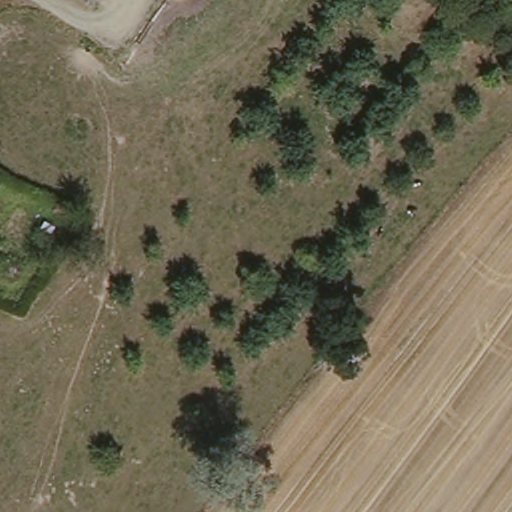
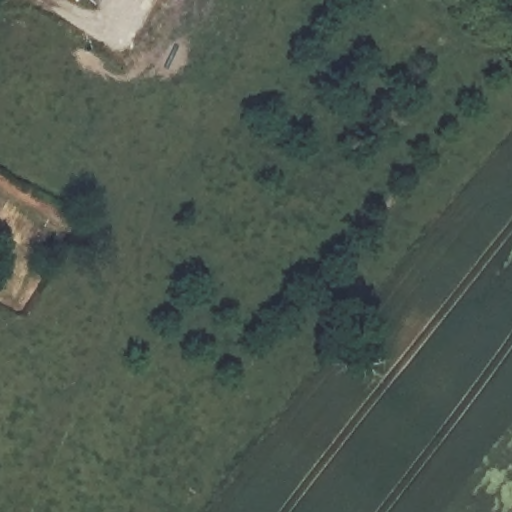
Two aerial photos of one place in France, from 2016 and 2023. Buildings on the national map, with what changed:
unchanged [(93,0),(115,0),(107,10),(93,0)]
unchanged [(72,229),(56,253),(38,243),(56,216),(72,229)]

